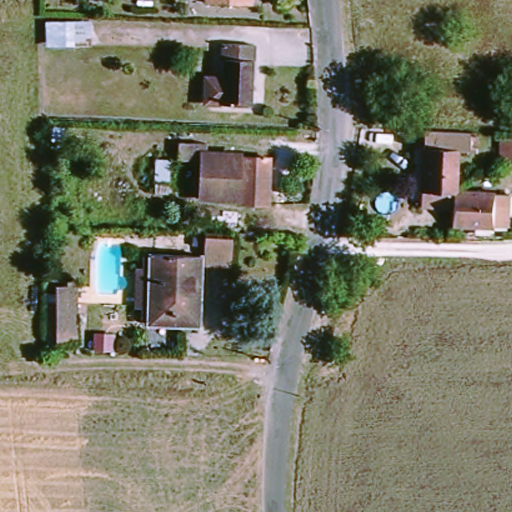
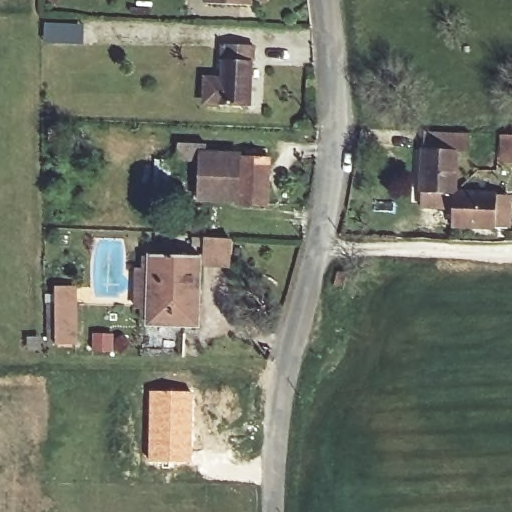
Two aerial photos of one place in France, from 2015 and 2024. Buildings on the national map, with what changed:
unchanged [(245,10),(206,7),(207,0),(246,0),(245,10)]
unchanged [(211,107),(212,81),(229,82),(230,45),(264,45),(262,109),(211,107)]
unchanged [(469,159),(458,158),(457,190),(455,194),(454,206),(419,204),(423,134),(469,135),(469,159)]
unchanged [(181,145),(207,145),(207,158),(240,159),(240,162),(269,165),(269,206),(240,206),(240,203),(201,203),(201,164),(180,164),(181,145)]
unchanged [(454,206),(455,194),(512,196),(512,231),(453,229),(454,206)]
unchanged [(231,251),(229,276),(204,275),(205,251),(231,251)]
unchanged [(131,284),(149,285),(149,269),(199,270),(199,338),(148,338),(148,324),(131,324),(131,284)]
unchanged [(76,289),(76,345),(55,344),(55,288),(76,289)]
new [(148,390),(193,391),(192,462),(147,461),(148,390)]

